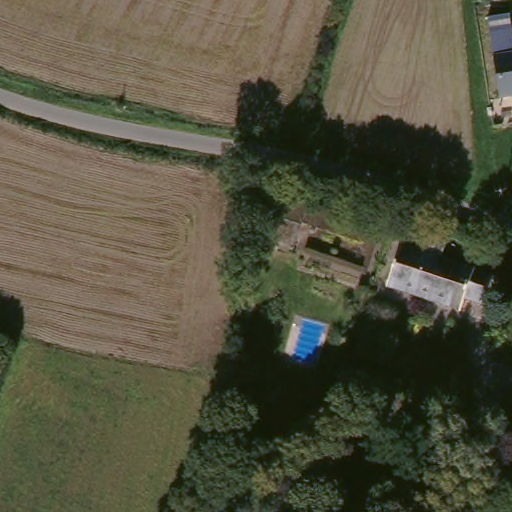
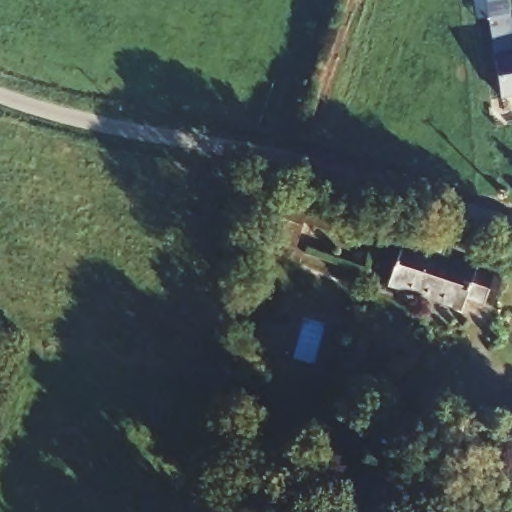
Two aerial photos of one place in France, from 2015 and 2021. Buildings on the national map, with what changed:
unchanged [(512,39),(512,98),(503,99),(489,19),(508,16),(512,39)]
unchanged [(266,239),(282,196),(367,225),(356,252),(299,234),(293,249),(288,262),(267,254),(271,240),(266,239)]
unchanged [(414,258),(439,266),(442,256),(458,261),(454,273),(485,283),(472,321),(400,298),(414,258)]

